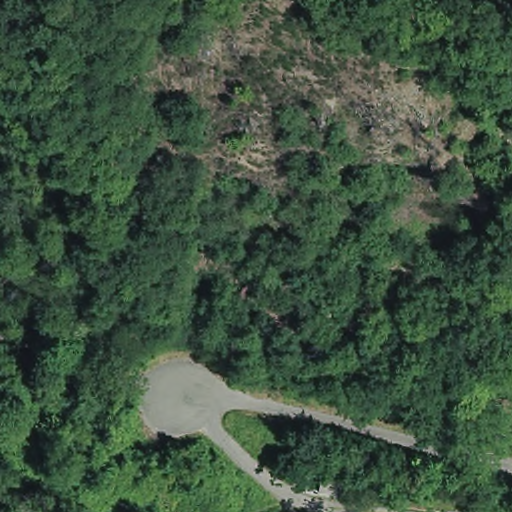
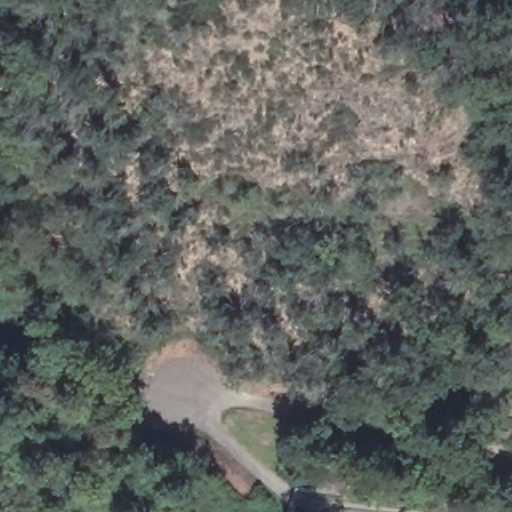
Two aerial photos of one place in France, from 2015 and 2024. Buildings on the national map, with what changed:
unchanged [(344,500),(316,495),(319,481),(346,485),(344,500)]

